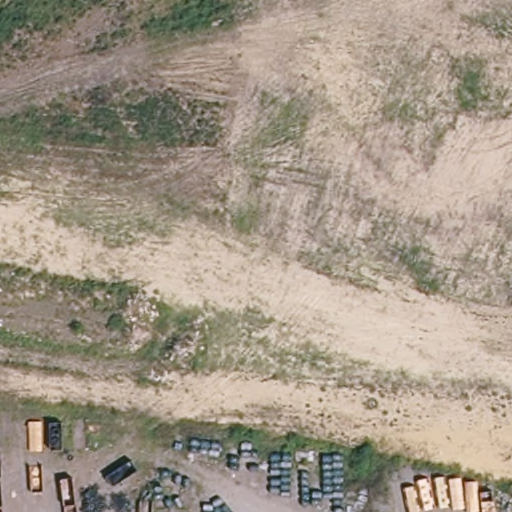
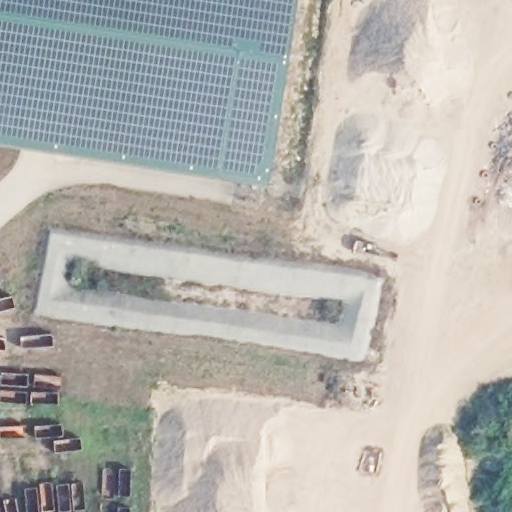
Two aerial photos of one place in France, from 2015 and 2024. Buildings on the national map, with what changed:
new [(270,182),(0,141),(0,0),(297,0),(270,182)]

